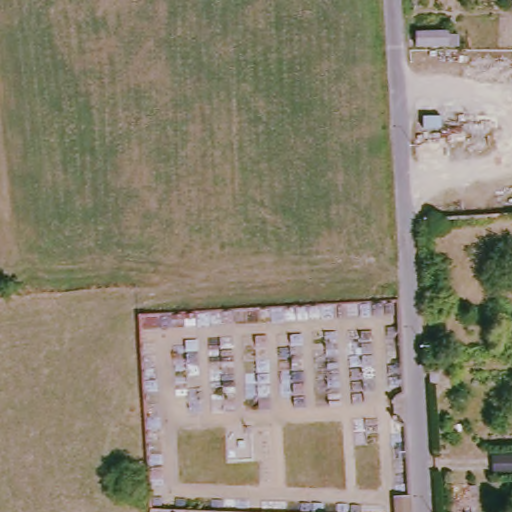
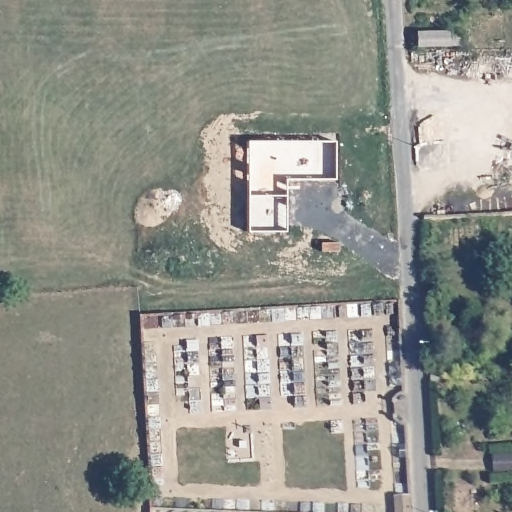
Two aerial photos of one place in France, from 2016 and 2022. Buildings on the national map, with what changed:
unchanged [(416,46),(416,31),(448,31),(448,46),(416,46)]
new [(338,181),(289,180),(286,233),(249,230),(246,139),(338,142),(338,181)]
unchanged [(409,497),(410,512),(393,512),(393,498),(409,497)]

